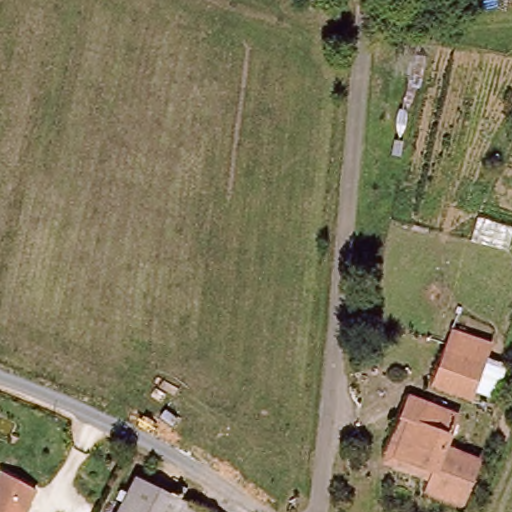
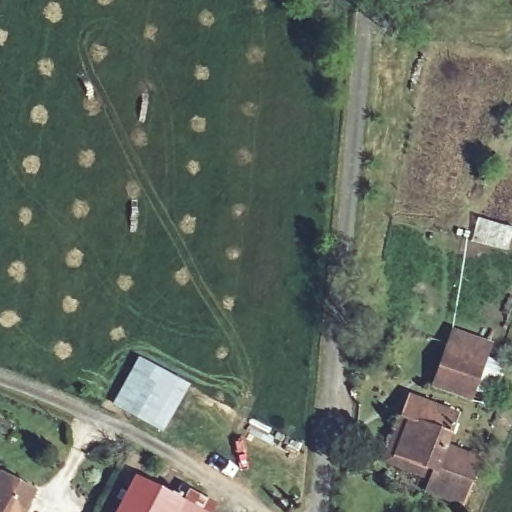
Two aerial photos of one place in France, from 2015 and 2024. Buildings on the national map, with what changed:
unchanged [(431,383),(445,351),(452,334),(487,350),(479,366),(466,398),(431,383)]
new [(190,385),(162,432),(113,405),(139,356),(190,385)]
unchanged [(459,415),(446,446),(480,462),(460,505),(427,490),(432,477),(387,458),(406,417),(414,395),(459,415)]
unchanged [(0,512),(0,475),(2,471),(36,490),(29,502),(30,503),(26,512),(0,512)]
unchanged [(122,512),(139,482),(185,508),(183,512),(122,512)]
unchanged [(183,512),(185,508),(191,512),(183,512)]

